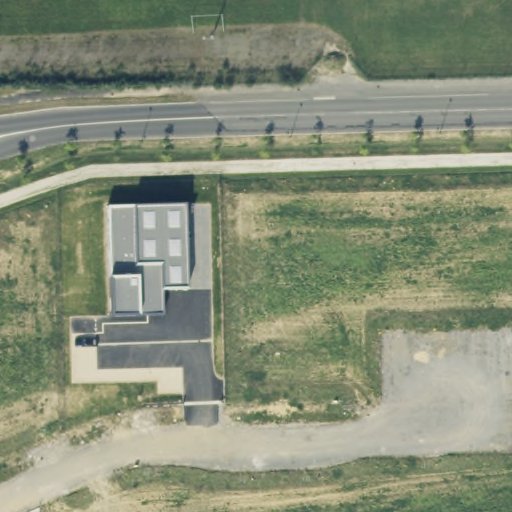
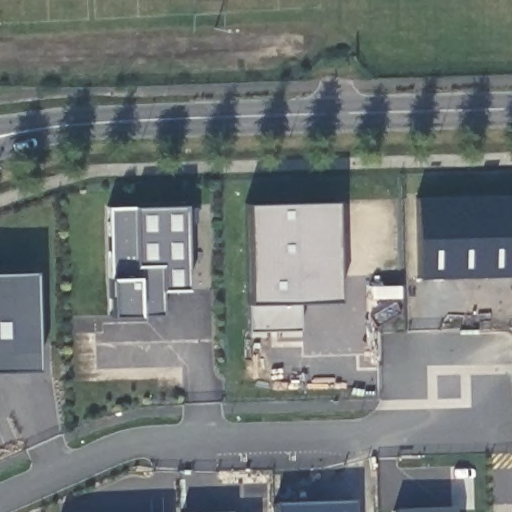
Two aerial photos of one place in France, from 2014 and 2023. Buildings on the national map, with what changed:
new [(418,279),(416,197),(512,195),(512,277),(418,279)]
new [(333,201),(336,302),(245,304),(242,203),(333,201)]
unchanged [(107,207),(135,207),(184,205),(186,288),(161,289),(161,314),(137,315),(112,315),(109,277),(107,207)]
new [(37,370),(0,371),(0,272),(35,271),(37,370)]
new [(351,505),(351,512),(274,512),(273,507),(351,505)]
new [(453,512),(433,512),(453,511),(453,512)]

